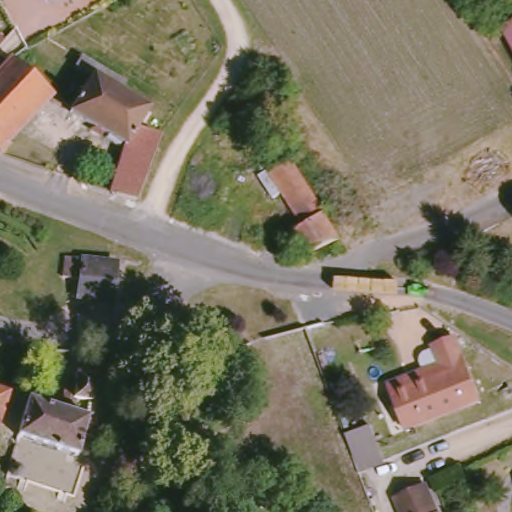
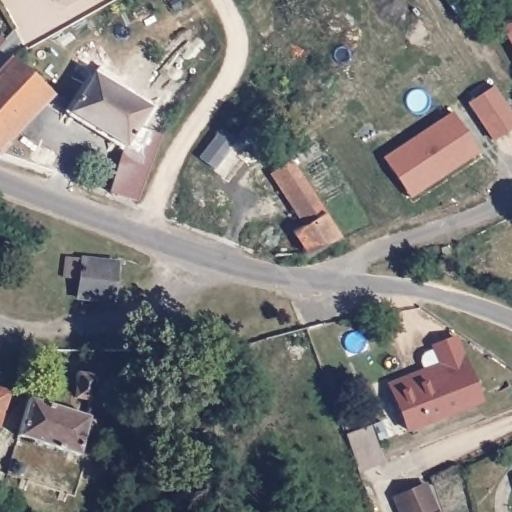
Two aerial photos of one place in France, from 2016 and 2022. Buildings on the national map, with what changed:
unchanged [(512,42),(503,26),(512,22),(512,42)]
unchanged [(138,130),(122,154),(67,116),(91,82),(74,71),(36,45),(30,41),(40,32),(49,38),(81,60),(126,90),(120,101),(146,119),(138,130)]
unchanged [(3,156),(0,155),(0,75),(17,57),(55,97),(7,140),(13,146),(3,156)]
new [(496,90),(512,115),(512,133),(495,144),(470,105),(496,90)]
new [(453,115),(480,154),(410,199),(385,160),(453,115)]
unchanged [(137,205),(111,197),(122,154),(138,130),(156,136),(137,205)]
unchanged [(309,226),(279,172),(298,161),(330,213),(309,226)]
unchanged [(344,236),(307,252),(294,235),(309,226),(330,213),(344,236)]
unchanged [(73,254),(125,265),(120,287),(116,305),(81,297),(85,279),(68,276),(73,254)]
unchanged [(396,393),(392,382),(425,370),(422,361),(426,353),(438,350),(436,345),(462,337),(485,402),(408,429),(396,393)]
unchanged [(63,411),(67,392),(78,394),(83,372),(100,375),(91,421),(97,423),(93,439),(87,439),(82,458),(24,438),(30,398),(63,411)]
unchanged [(3,426),(0,425),(0,384),(12,388),(3,426)]
unchanged [(372,422),(376,431),(388,457),(365,467),(351,432),(372,422)]
unchanged [(196,451),(195,426),(216,426),(217,451),(196,451)]
unchanged [(428,477),(444,512),(410,512),(400,488),(428,477)]

